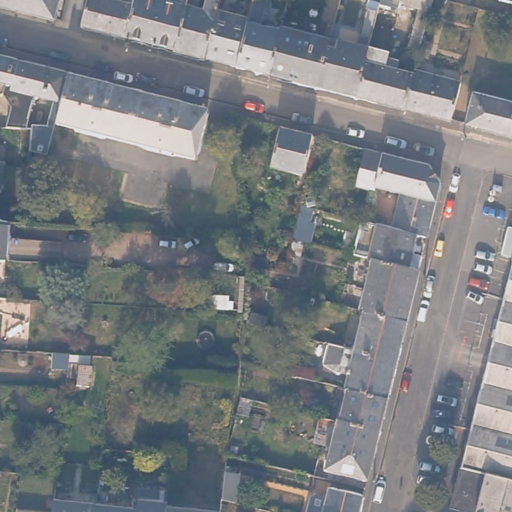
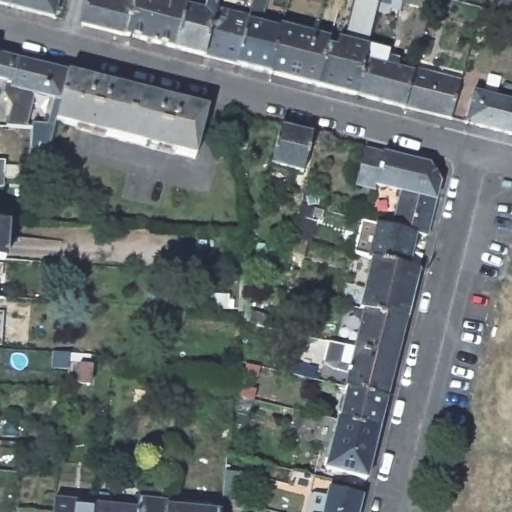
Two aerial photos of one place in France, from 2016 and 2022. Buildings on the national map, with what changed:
unchanged [(0,6),(0,0),(8,0),(6,8),(0,6)]
unchanged [(8,0),(52,0),(47,19),(6,8),(8,0)]
unchanged [(81,0),(104,0),(128,6),(120,37),(74,25),(81,0)]
unchanged [(167,49),(120,37),(128,6),(129,0),(158,0),(167,3),(168,0),(180,0),(179,5),(167,49)]
unchanged [(179,5),(196,10),(199,0),(212,0),(210,9),(198,56),(167,49),(179,5)]
unchanged [(244,17),(248,0),(261,0),(255,26),(274,30),(263,73),(232,65),(244,17)]
unchanged [(404,48),(414,8),(395,3),(396,1),(394,0),(427,0),(413,51),(404,48)]
unchanged [(360,35),(366,8),(377,11),(370,37),(360,35)]
unchanged [(198,56),(210,9),(244,17),(232,65),(198,56)]
unchanged [(263,73),(274,30),(275,27),(324,39),(321,47),(311,86),(263,73)]
unchanged [(311,86),(321,47),(330,49),(333,40),(363,48),(360,61),(351,96),(311,86)]
unchanged [(57,109),(34,103),(35,96),(9,90),(8,92),(1,91),(3,83),(0,82),(0,57),(66,74),(57,109)]
unchanged [(351,96),(360,61),(380,66),(382,60),(393,63),(391,70),(408,74),(399,108),(351,96)]
unchanged [(399,108),(408,74),(408,71),(455,82),(445,120),(399,108)]
unchanged [(192,161),(79,131),(79,130),(54,124),(57,109),(66,74),(206,110),(192,161)]
unchanged [(512,103),(512,135),(465,124),(473,93),(512,103)]
unchanged [(311,136),(302,175),(270,167),(278,128),(311,136)]
unchanged [(443,179),(430,233),(421,230),(396,224),(405,191),(378,185),(378,187),(360,184),(370,145),(387,150),(432,161),(443,179)]
unchanged [(2,161),(2,164),(27,166),(26,179),(1,177),(0,177),(0,161),(2,161)]
unchanged [(289,253),(292,240),(300,206),(311,209),(303,242),(303,243),(300,256),(289,253)]
unchanged [(396,224),(421,230),(416,250),(425,253),(422,267),(412,264),(412,266),(376,256),(370,254),(371,253),(356,249),(365,216),(368,217),(396,224)]
unchanged [(4,261),(0,260),(0,220),(5,220),(4,261)]
unchanged [(412,266),(412,264),(422,267),(410,316),(368,305),(364,304),(376,256),(412,266)]
demolished [(485,510),(454,502),(512,266),(512,512),(485,512),(485,510)]
unchanged [(210,293),(230,294),(229,309),(210,308),(210,293)]
unchanged [(410,316),(400,355),(359,345),(368,305),(410,316)]
unchanged [(253,311),(268,315),(266,326),(250,322),(253,311)]
unchanged [(391,393),(352,383),(349,383),(353,368),(338,364),(327,358),(332,338),(359,345),(400,355),(391,393)]
unchanged [(105,356),(104,389),(65,385),(67,355),(105,356)]
unchanged [(322,363),(318,374),(296,368),(300,357),(322,363)]
unchanged [(383,425),(345,416),(352,383),(391,393),(383,425)]
unchanged [(371,474),(328,463),(340,415),(345,416),(383,425),(371,474)]
unchanged [(224,471),(239,473),(236,504),(221,501),(224,471)]
unchanged [(362,512),(308,512),(315,485),(330,489),(332,483),(367,492),(362,512)]
unchanged [(164,512),(134,512),(136,495),(165,499),(165,503),(164,512)]
unchanged [(219,512),(164,512),(165,503),(220,509),(219,512)]
unchanged [(15,506),(51,510),(51,512),(15,512),(15,506)]
unchanged [(51,510),(75,512),(51,512),(51,510)]

